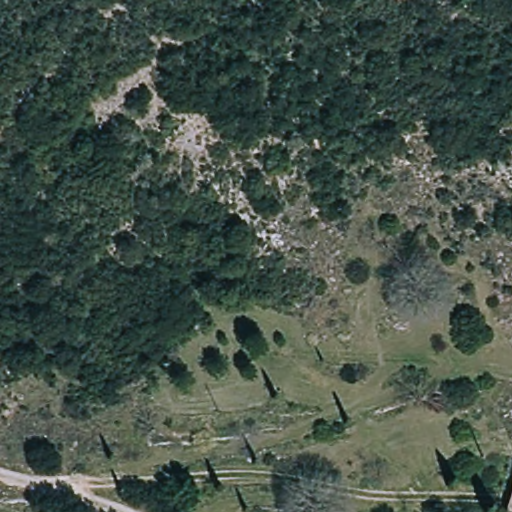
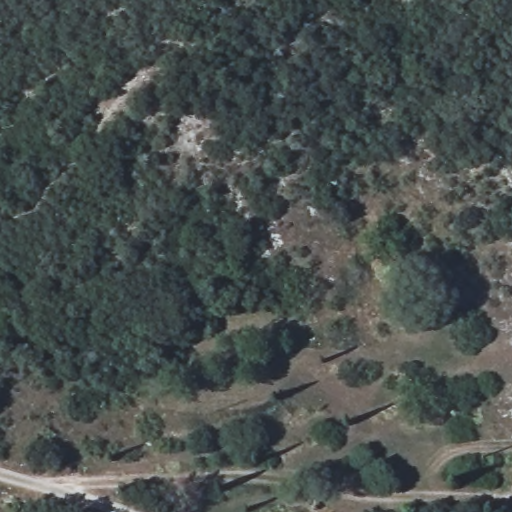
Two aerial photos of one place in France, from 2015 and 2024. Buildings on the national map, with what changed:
unchanged [(512,491),(512,512),(505,512),(512,491)]

